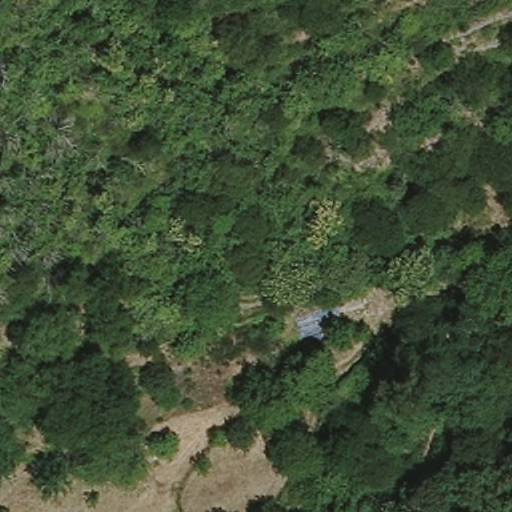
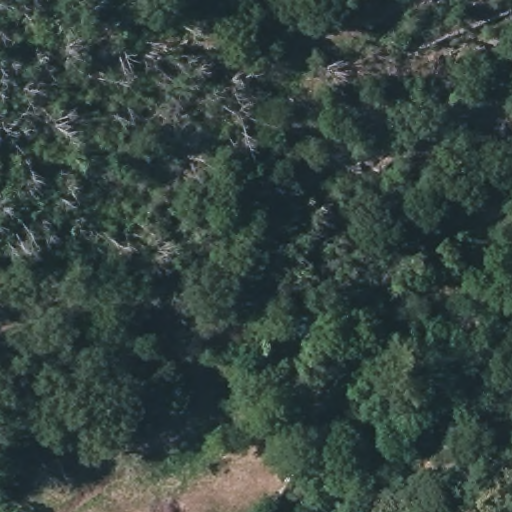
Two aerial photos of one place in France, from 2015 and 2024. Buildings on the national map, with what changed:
[]

